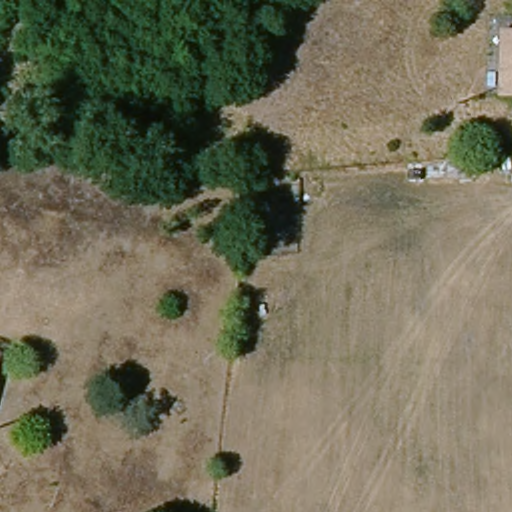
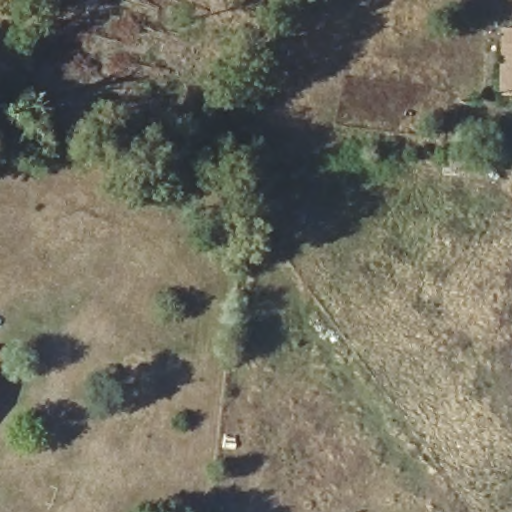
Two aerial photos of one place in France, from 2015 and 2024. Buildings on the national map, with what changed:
unchanged [(493,44),(493,34),(503,35),(503,27),(512,27),(512,91),(501,91),(503,45),(493,44)]

